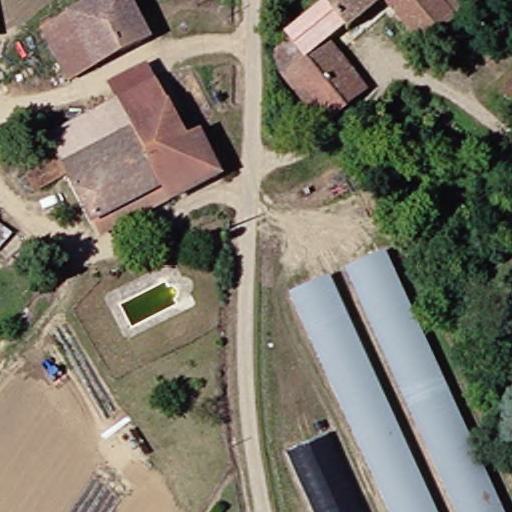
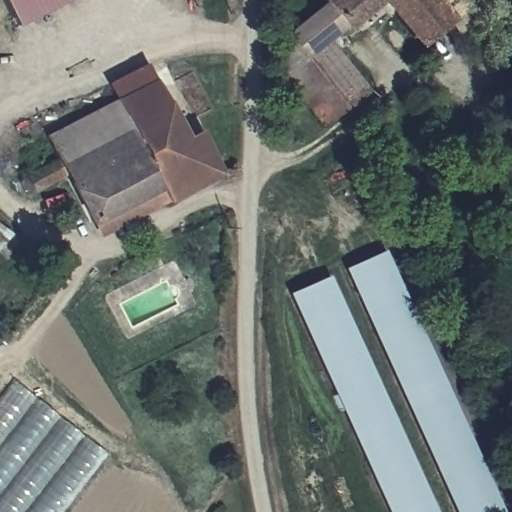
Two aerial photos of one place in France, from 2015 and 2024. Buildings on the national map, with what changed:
new [(22,19),(17,22),(6,0),(74,0),(25,25),(22,19)]
demolished [(61,82),(35,30),(91,0),(116,0),(137,41),(61,82)]
unchanged [(353,97),(317,128),(273,71),(279,35),(313,2),(312,0),(362,0),(315,44),(353,97)]
unchanged [(379,0),(430,0),(446,19),(415,45),(379,0)]
unchanged [(455,0),(470,20),(455,32),(446,19),(430,0),(455,0)]
unchanged [(82,220),(31,128),(43,122),(49,132),(149,78),(175,130),(190,128),(211,169),(162,192),(85,232),(82,220)]
unchanged [(499,95),(512,78),(512,105),(499,95)]
unchanged [(46,188),(22,198),(13,181),(37,170),(46,188)]
unchanged [(494,512),(449,512),(339,269),(375,254),(494,512)]
unchanged [(322,278),(426,512),(382,512),(283,294),(322,278)]
new [(107,454),(62,512),(0,512),(0,402),(15,383),(107,454)]
demolished [(286,447),(333,429),(368,512),(316,512),(286,447)]

